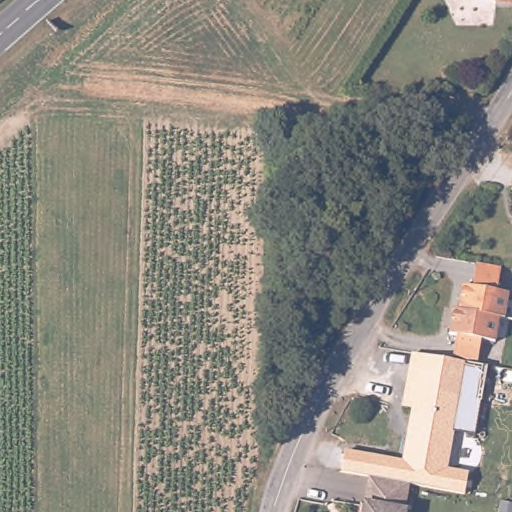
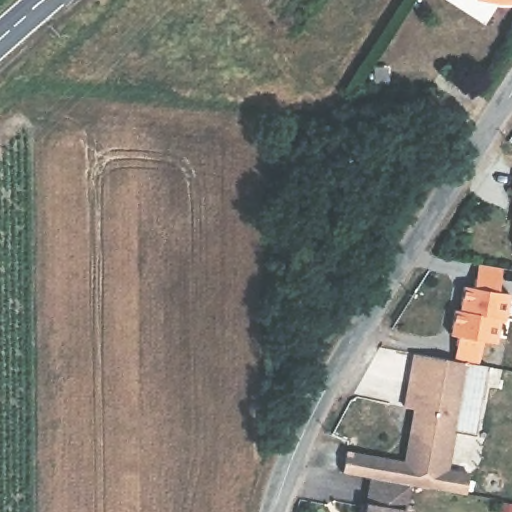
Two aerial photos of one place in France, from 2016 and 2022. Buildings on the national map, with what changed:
unchanged [(456,360),(459,344),(461,336),(454,335),(459,310),(462,311),(467,286),(475,288),(477,277),(480,263),(504,267),(500,292),(511,295),(508,319),(503,318),(499,342),(486,340),(482,364),(456,360)]
unchanged [(413,407),(403,406),(407,386),(458,396),(445,473),(403,466),(413,407)]
unchanged [(403,510),(406,511),(406,512),(360,512),(361,503),(366,504),(371,477),(408,483),(403,510)]

